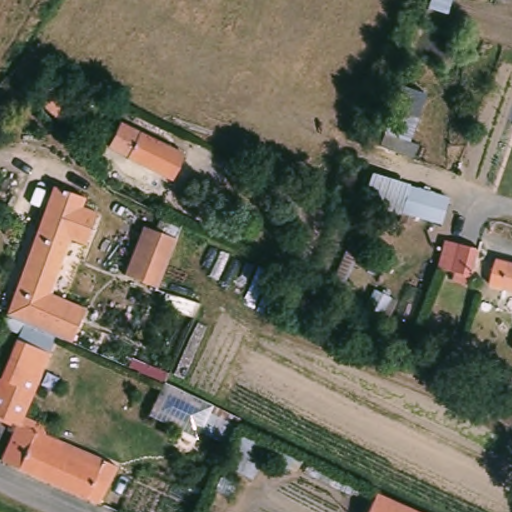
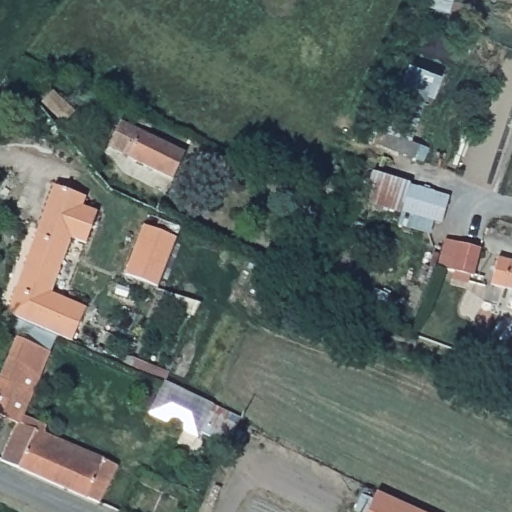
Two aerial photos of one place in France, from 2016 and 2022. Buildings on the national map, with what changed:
unchanged [(122,121),(188,151),(176,179),(110,149),(122,121)]
unchanged [(441,228),(400,219),(402,209),(370,202),(377,175),(411,185),(447,199),(441,228)]
unchanged [(54,334),(49,344),(16,331),(6,325),(8,314),(54,185),(87,197),(83,207),(96,211),(83,243),(70,239),(50,293),(85,308),(72,340),(54,334)]
unchanged [(143,223),(176,234),(157,289),(123,278),(143,223)]
unchanged [(475,278),(472,277),(471,284),(455,280),(456,273),(453,273),(460,244),(482,249),(475,278)]
unchanged [(512,294),(493,290),(500,262),(512,264),(512,294)]
unchanged [(161,298),(167,284),(210,300),(204,314),(161,298)]
unchanged [(0,418),(0,374),(16,331),(49,344),(19,425),(0,418)]
unchanged [(201,427),(152,404),(167,373),(173,375),(178,378),(216,395),(244,408),(232,434),(203,421),(201,427)]
unchanged [(38,432),(32,445),(92,468),(97,453),(120,461),(101,504),(4,464),(19,425),(38,432)]
unchanged [(414,504),(433,512),(358,512),(371,484),(414,504)]

